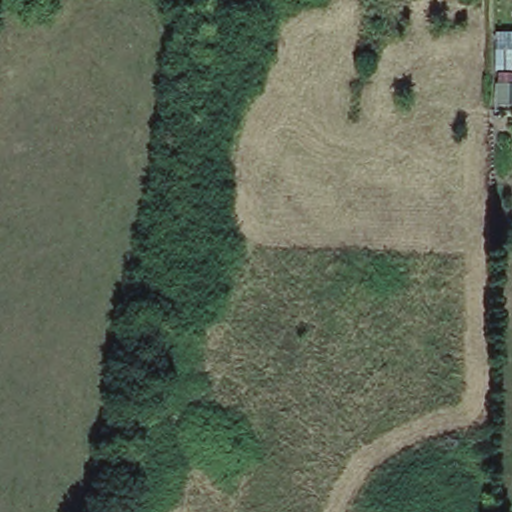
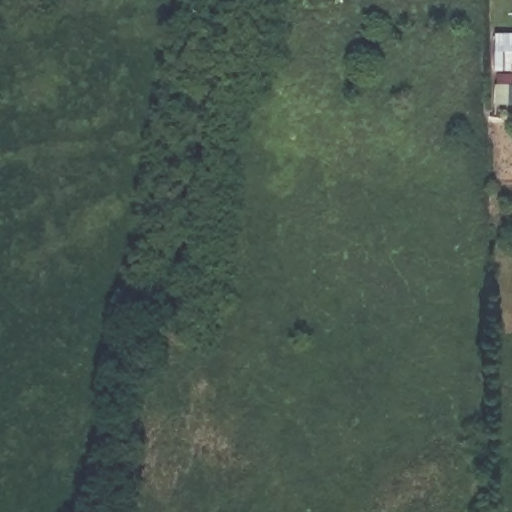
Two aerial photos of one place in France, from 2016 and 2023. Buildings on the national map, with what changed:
unchanged [(493,105),(494,32),(512,31),(512,105),(493,105)]

